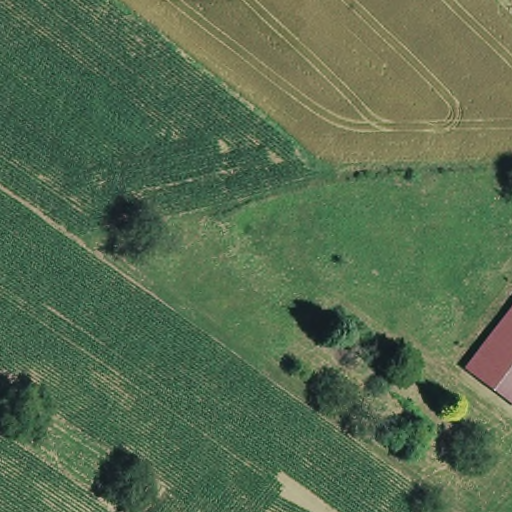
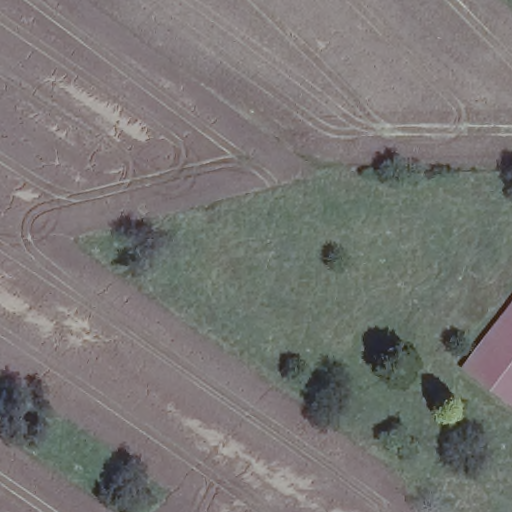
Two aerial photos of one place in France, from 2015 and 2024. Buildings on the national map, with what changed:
unchanged [(512,303),(512,407),(462,366),(512,303)]

